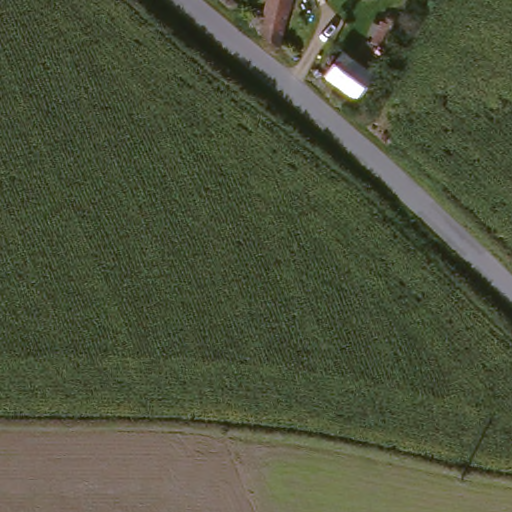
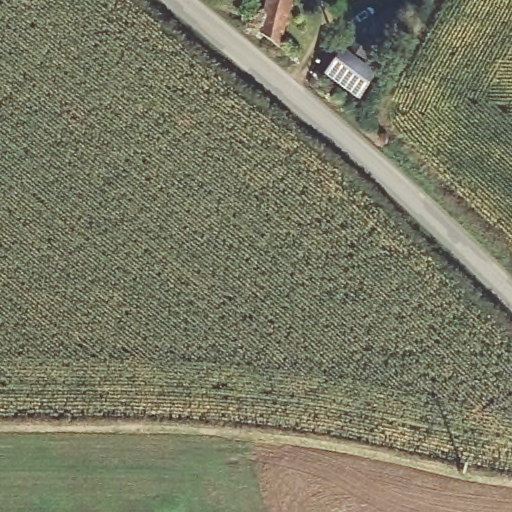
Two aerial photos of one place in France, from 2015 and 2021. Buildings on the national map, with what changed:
unchanged [(259,31),(265,0),(291,0),(283,39),(259,31)]
unchanged [(374,40),(383,19),(397,26),(388,47),(374,40)]
unchanged [(327,73),(345,49),(375,73),(359,96),(327,73)]

